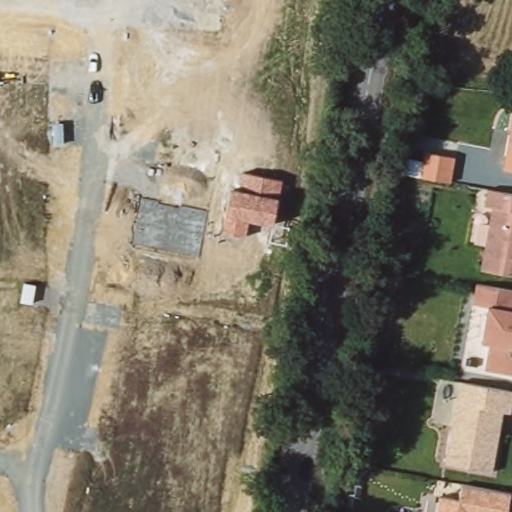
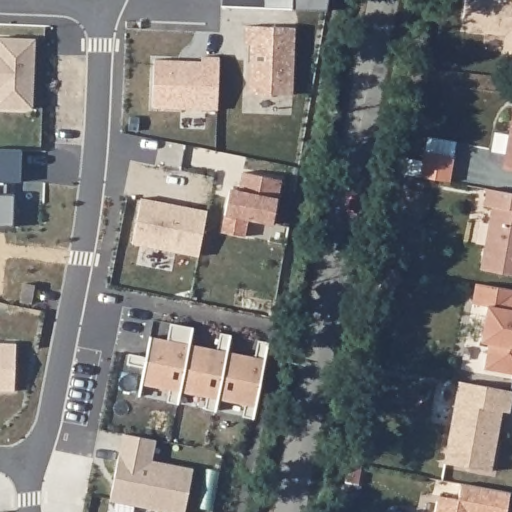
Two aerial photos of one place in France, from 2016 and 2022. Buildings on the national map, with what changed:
new [(292,12),(292,0),(329,0),(326,14),(292,12)]
new [(505,35),(462,31),(465,0),(512,0),(512,53),(503,52),(505,35)]
new [(295,26),(292,94),(249,92),(250,61),(247,60),(248,43),(245,43),(245,25),(295,26)]
new [(34,39),(31,109),(0,108),(0,38),(34,39)]
new [(154,59),(202,60),(202,55),(219,56),(217,109),(152,106),(154,59)]
unchanged [(512,136),(512,169),(507,168),(512,136)]
new [(15,194),(13,226),(0,226),(0,148),(21,149),(20,181),(7,181),(7,194),(15,194)]
unchanged [(450,181),(423,175),(427,154),(456,158),(450,181)]
unchanged [(279,207),(276,206),(273,224),(249,219),(245,235),(223,231),(226,214),(231,189),(242,190),(244,173),(283,180),(279,207)]
unchanged [(488,206),(491,188),(512,192),(512,275),(486,269),(495,207),(488,206)]
new [(158,200),(179,205),(207,210),(198,255),(132,242),(141,197),(158,200)]
new [(387,247),(388,242),(403,245),(402,250),(398,270),(395,289),(380,286),(383,267),(387,247)]
unchanged [(487,342),(492,306),(474,303),(477,284),(512,292),(512,372),(490,370),(495,342),(487,342)]
new [(258,343),(268,345),(253,422),(242,420),(244,407),(218,402),(215,415),(204,412),(207,400),(180,395),(178,407),(167,405),(169,393),(140,387),(144,371),(127,367),(129,357),(146,361),(148,348),(150,340),(167,343),(170,327),(193,331),(189,348),(207,351),(217,353),(220,336),(230,338),(227,355),(244,358),(255,360),(258,343)]
new [(15,344),(14,391),(0,391),(0,343),(15,344)]
unchanged [(443,406),(446,383),(460,385),(460,383),(512,393),(512,418),(503,416),(495,472),(444,465),(453,408),(443,406)]
new [(123,437),(156,443),(152,465),(193,472),(186,512),(150,512),(110,504),(113,488),(114,480),(123,437)]
unchanged [(440,497),(460,500),(462,486),(512,493),(512,499),(510,512),(439,512),(440,497)]

